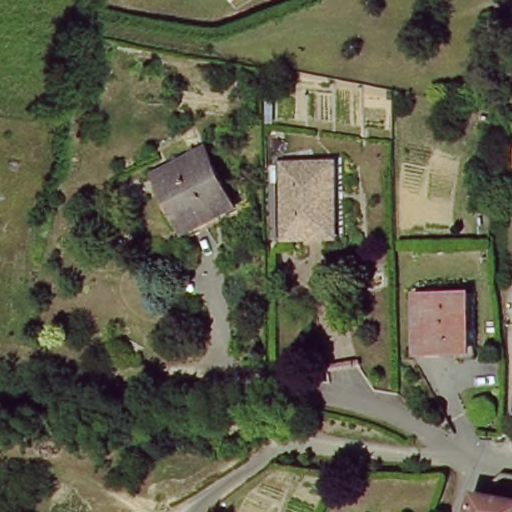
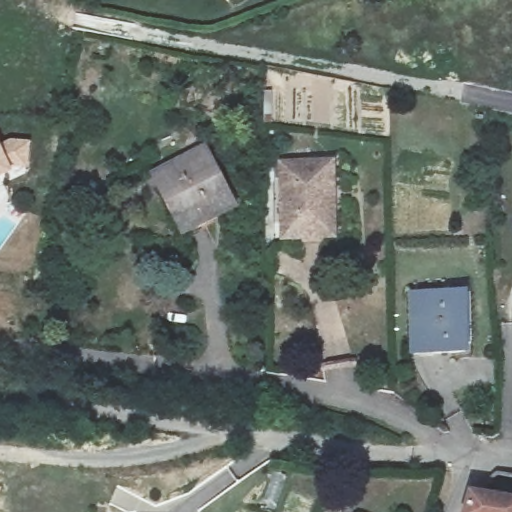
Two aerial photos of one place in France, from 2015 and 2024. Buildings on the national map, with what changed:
new [(1,150),(13,145),(29,146),(27,167),(17,166),(9,170),(11,173),(1,177),(0,178),(0,149),(1,150)]
unchanged [(211,151),(238,213),(186,236),(159,175),(211,151)]
unchanged [(287,164),(339,162),(341,183),(330,184),(330,236),(290,237),(287,164)]
unchanged [(470,295),(472,355),(421,355),(420,295),(470,295)]
unchanged [(480,493),(501,472),(512,475),(512,512),(475,512),(480,493)]

